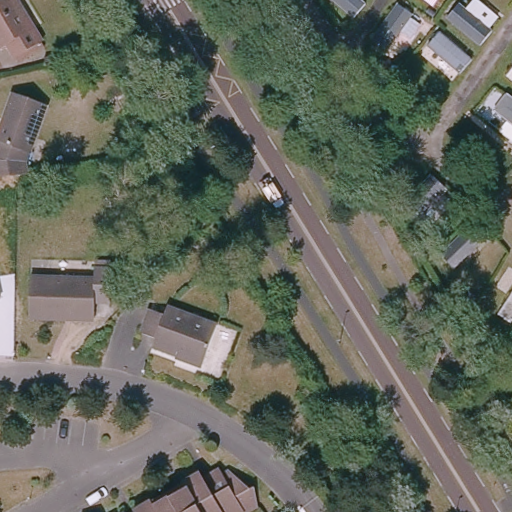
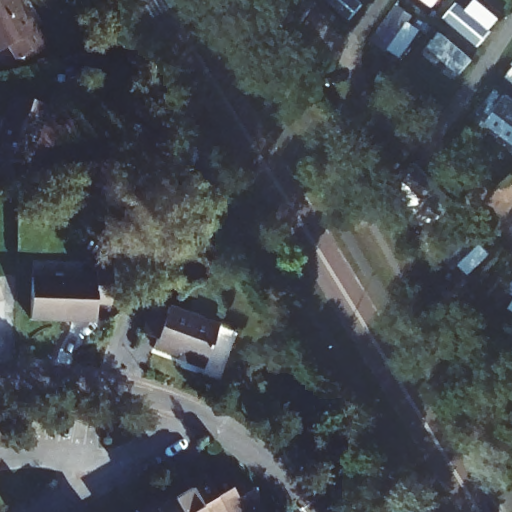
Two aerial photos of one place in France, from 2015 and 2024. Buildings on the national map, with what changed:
unchanged [(15,59),(8,46),(0,51),(0,0),(16,0),(34,30),(26,35),(33,47),(37,53),(18,64),(15,59)]
unchanged [(0,171),(0,115),(9,90),(41,101),(20,158),(23,170),(11,170),(0,171)]
unchanged [(30,278),(88,281),(95,282),(95,269),(112,270),(111,303),(95,302),(95,317),(63,314),(62,320),(30,318),(30,278)]
unchanged [(202,356),(152,337),(155,329),(140,325),(150,300),(165,305),(166,298),(217,316),(202,356)]
unchanged [(151,497),(154,502),(185,484),(181,479),(200,469),(203,475),(213,469),(221,464),(223,469),(228,466),(250,485),(254,483),(257,504),(244,512),(243,512),(241,507),(234,512),(221,512),(221,511),(220,512),(137,512),(133,507),(151,497)]

